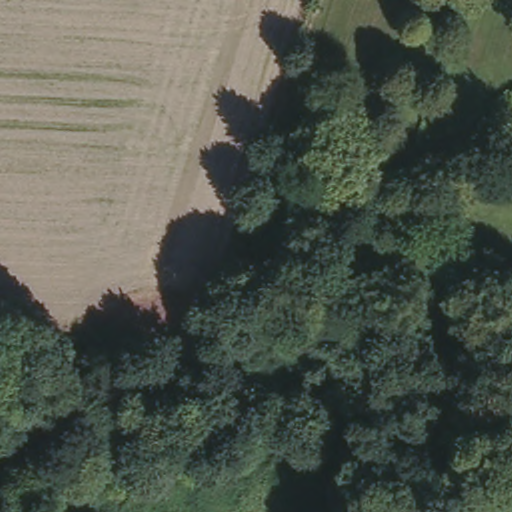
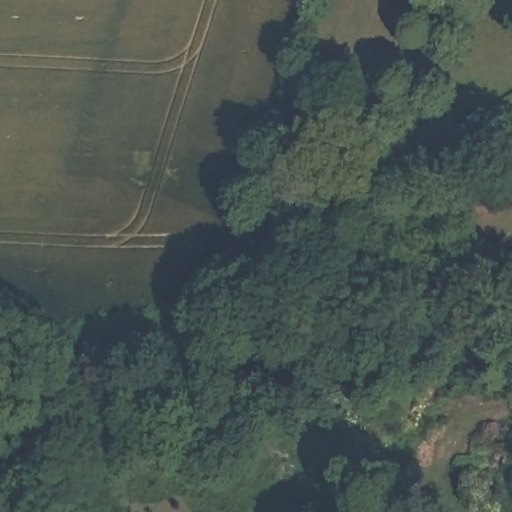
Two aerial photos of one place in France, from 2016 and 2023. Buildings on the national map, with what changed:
unchanged [(377,388),(377,411),(334,410),(335,388),(377,388)]
unchanged [(219,407),(217,428),(133,426),(134,404),(219,407)]
unchanged [(400,506),(399,512),(383,512),(383,506),(400,506)]

